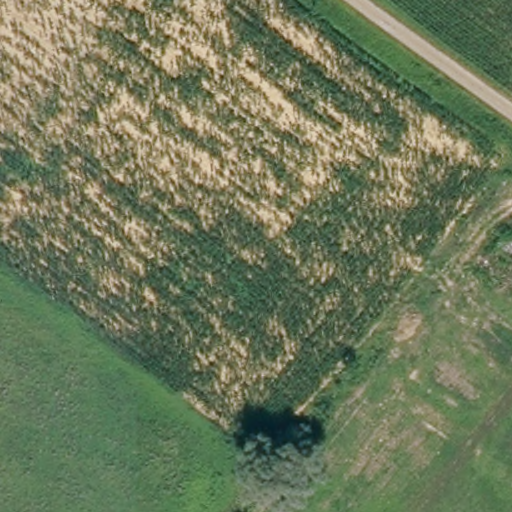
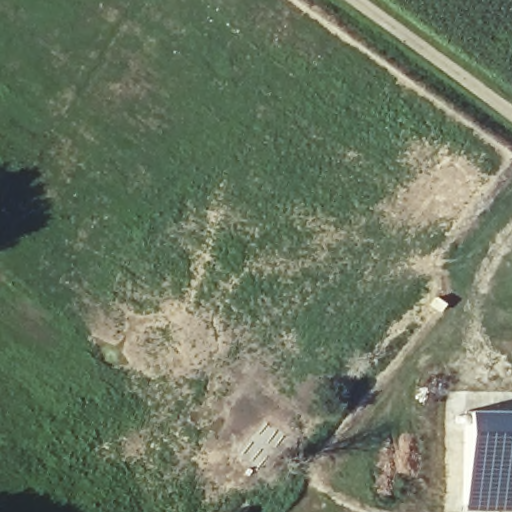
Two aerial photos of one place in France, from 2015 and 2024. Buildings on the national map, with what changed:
new [(467,409),(512,409),(512,510),(466,509),(467,409)]

